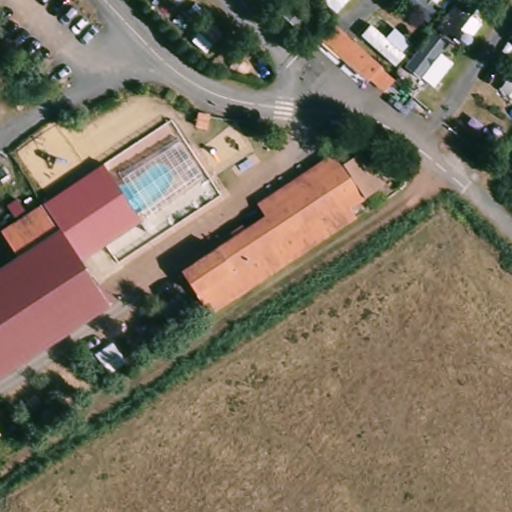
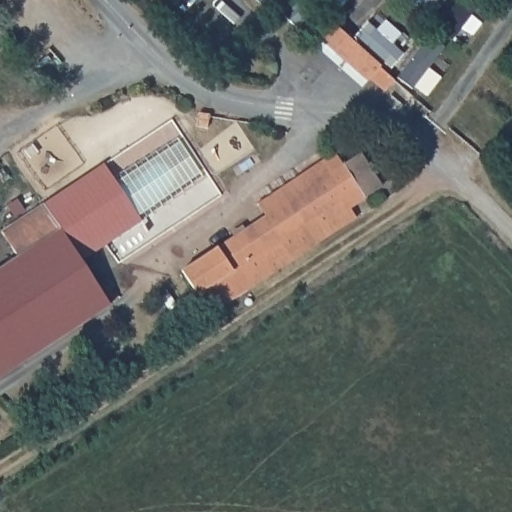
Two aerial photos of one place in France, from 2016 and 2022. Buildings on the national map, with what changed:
unchanged [(381,94),(376,88),(362,75),(351,82),(313,46),(332,24),(397,79),(381,94)]
unchanged [(348,157),(274,207),(271,209),(262,195),(338,144),(348,157)]
unchanged [(348,157),(363,147),(387,181),(356,200),(363,208),(290,257),(276,237),(290,227),(274,207),(348,157)]
unchanged [(108,166),(139,220),(79,257),(44,203),(108,166)]
unchanged [(1,231),(24,216),(44,203),(79,257),(111,304),(0,375),(0,269),(18,257),(1,231)]
unchanged [(274,207),(290,227),(276,237),(290,257),(202,318),(175,281),(172,275),(250,223),(271,209),(274,207)]

